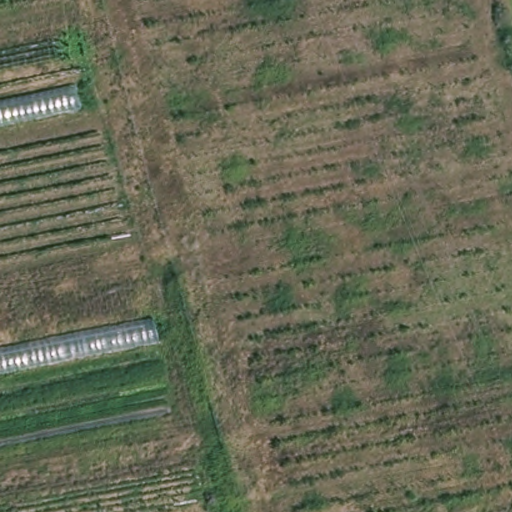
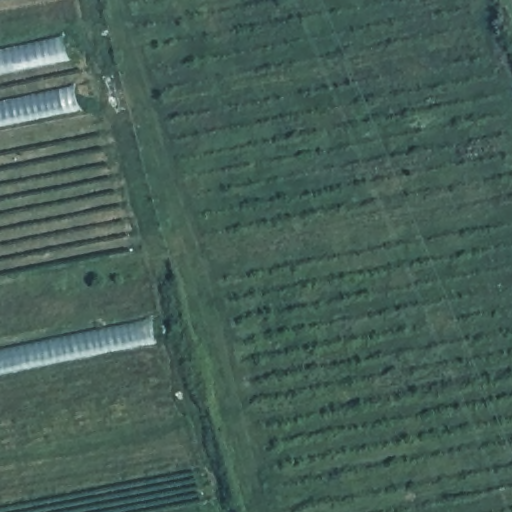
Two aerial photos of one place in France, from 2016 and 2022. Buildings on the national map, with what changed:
demolished [(67,36),(74,61),(0,77),(0,50),(67,36)]
unchanged [(79,82),(85,109),(0,127),(0,100),(79,82)]
unchanged [(154,317),(160,342),(0,375),(0,349),(154,317)]

